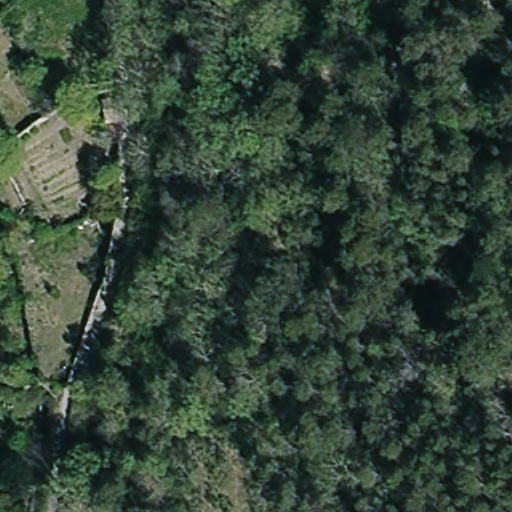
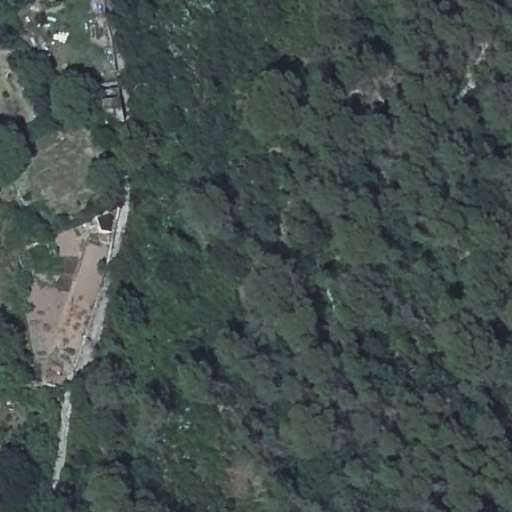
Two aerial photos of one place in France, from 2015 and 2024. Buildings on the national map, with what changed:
unchanged [(118,84),(102,87),(100,76),(116,73),(118,84)]
unchanged [(124,122),(105,126),(102,107),(121,103),(124,122)]
unchanged [(100,222),(90,227),(87,221),(97,216),(100,222)]

